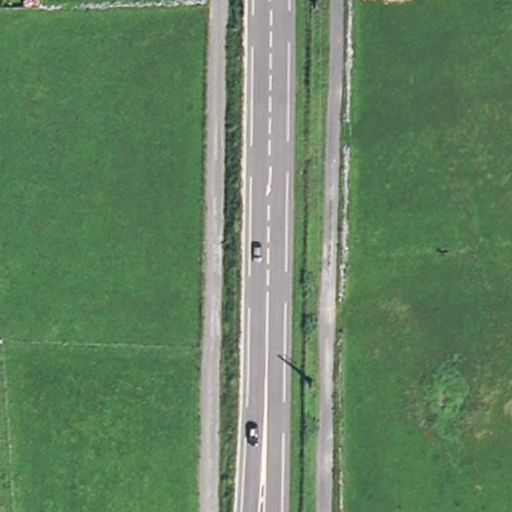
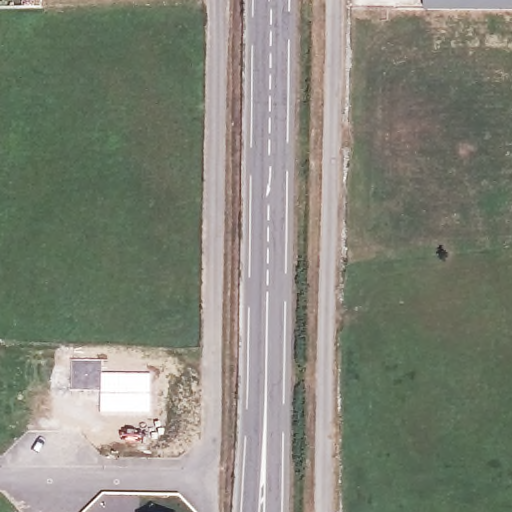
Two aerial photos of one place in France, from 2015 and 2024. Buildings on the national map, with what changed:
new [(512,10),(424,10),(424,0),(512,0),(512,10)]
new [(70,388),(70,357),(101,359),(101,370),(150,371),(150,412),(99,412),(100,389),(70,388)]

